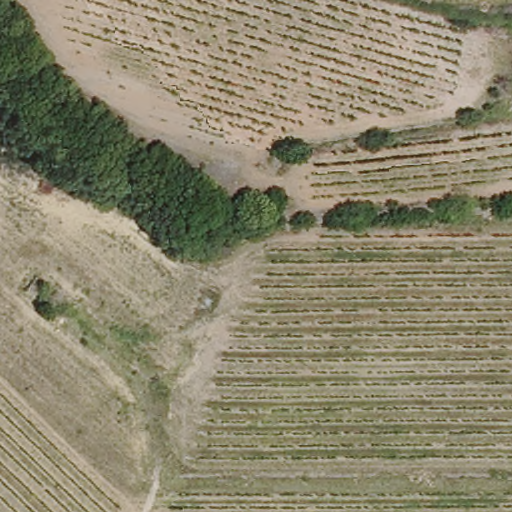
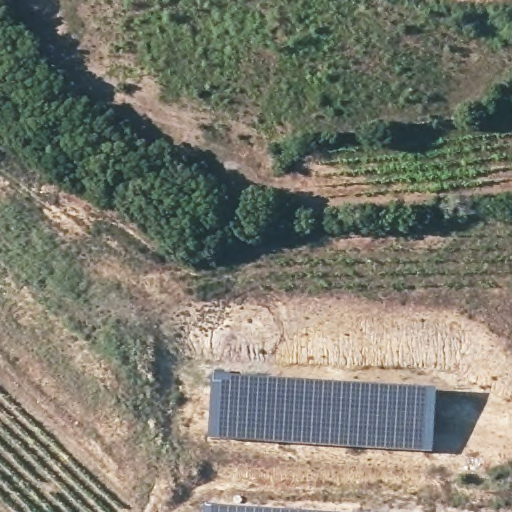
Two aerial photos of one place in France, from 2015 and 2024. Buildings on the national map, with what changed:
new [(207,440),(212,375),(434,388),(432,453),(207,440)]
new [(267,512),(203,512),(203,508),(267,512)]

